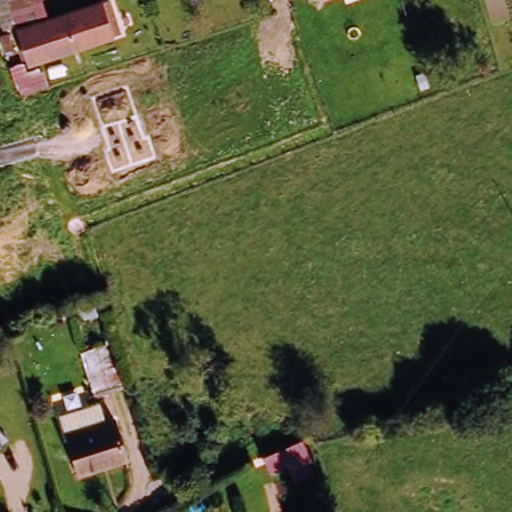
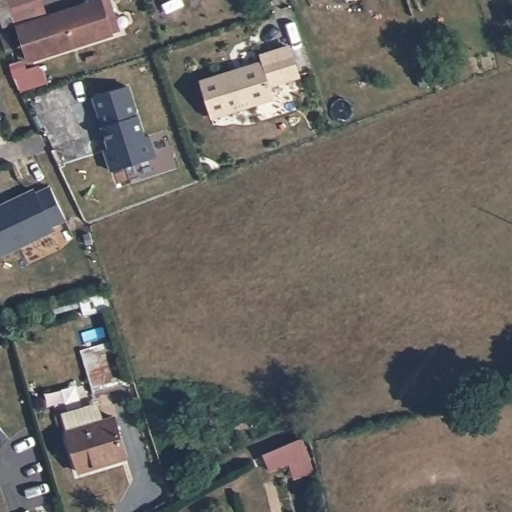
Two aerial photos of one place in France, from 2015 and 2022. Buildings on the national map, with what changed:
unchanged [(26,57),(12,7),(31,0),(42,0),(47,15),(96,0),(107,0),(117,34),(26,57)]
new [(260,62),(259,56),(288,46),(297,75),(268,84),(272,97),(211,117),(200,82),(260,62)]
new [(110,148),(102,125),(93,98),(129,86),(139,115),(147,136),(149,136),(156,157),(112,171),(105,150),(110,148)]
new [(38,195),(52,189),(67,221),(53,227),(55,231),(0,257),(0,255),(0,209),(37,192),(38,195)]
new [(106,290),(111,308),(83,316),(78,297),(106,290)]
unchanged [(118,389),(85,399),(70,350),(104,341),(118,389)]
unchanged [(103,396),(108,422),(114,419),(132,467),(80,477),(54,413),(103,396)]
unchanged [(0,444),(0,429),(7,437),(0,444)]

